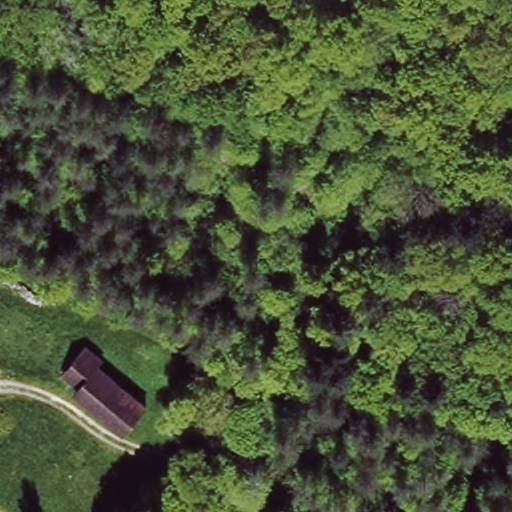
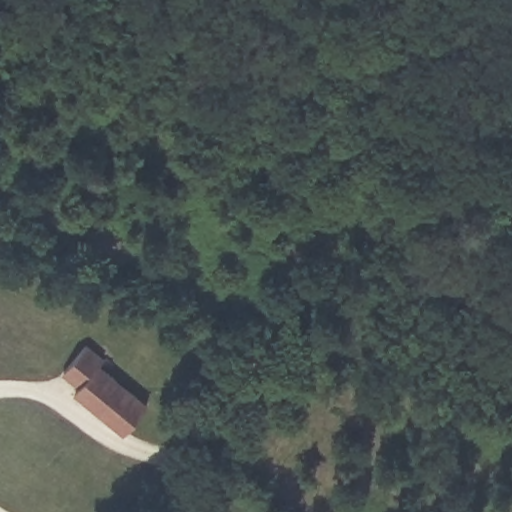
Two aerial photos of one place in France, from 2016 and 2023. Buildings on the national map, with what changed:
unchanged [(150,402),(127,430),(79,390),(85,381),(67,366),(88,341),(107,356),(101,363),(150,402)]

